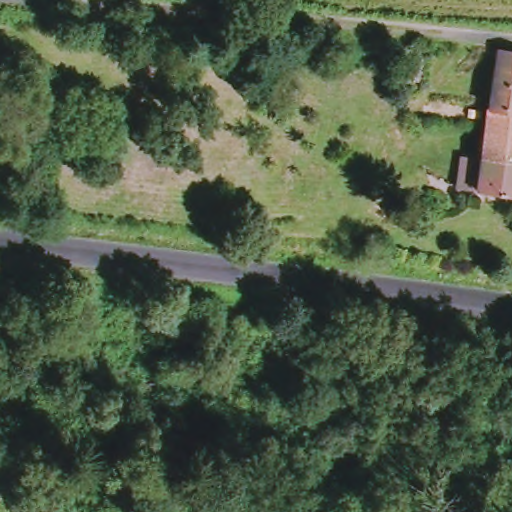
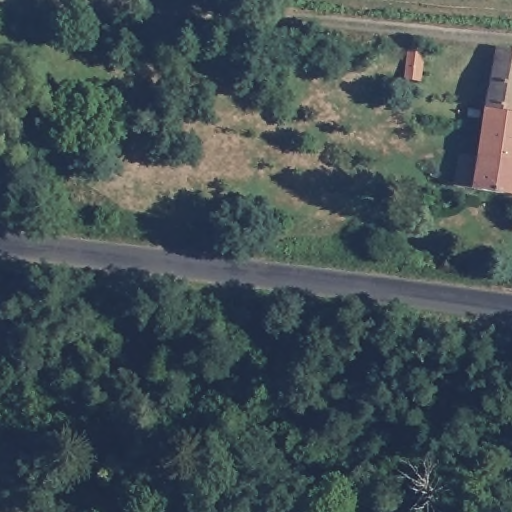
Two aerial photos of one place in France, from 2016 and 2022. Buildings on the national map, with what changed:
unchanged [(398,77),(400,49),(417,50),(414,81),(398,77)]
unchanged [(493,108),(500,51),(512,52),(512,111),(493,108)]
unchanged [(467,161),(487,164),(493,108),(512,111),(512,195),(482,192),(465,190),(467,161)]

